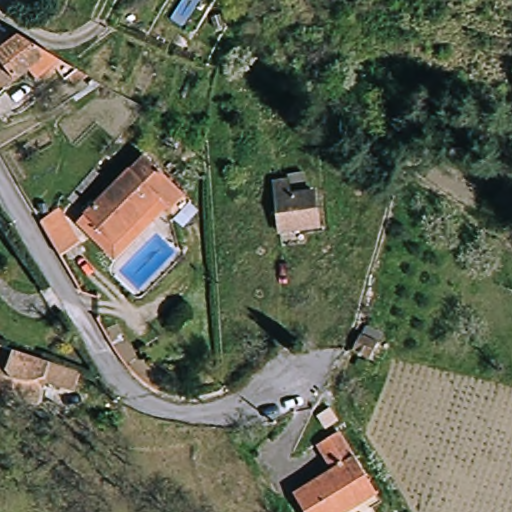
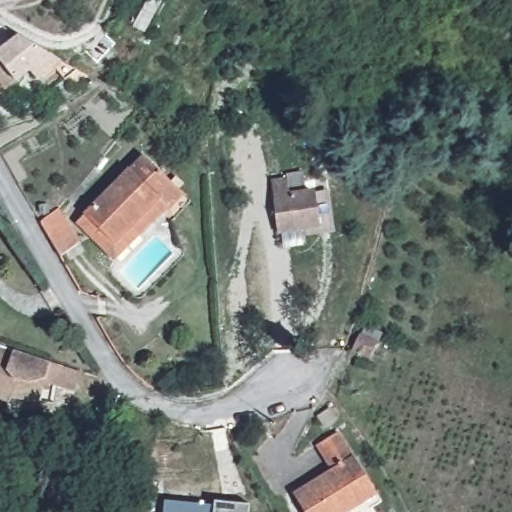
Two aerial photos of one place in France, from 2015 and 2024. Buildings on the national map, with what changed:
unchanged [(31,44),(66,64),(40,85),(32,77),(20,84),(0,59),(0,49),(17,36),(31,44)]
unchanged [(154,150),(190,181),(125,257),(97,232),(89,225),(154,150)]
unchanged [(317,192),(322,226),(280,232),(275,197),(317,192)]
unchanged [(97,232),(73,257),(48,217),(57,209),(63,201),(89,225),(97,232)]
unchanged [(372,350),(357,342),(362,325),(379,333),(372,350)]
unchanged [(66,390),(55,395),(55,408),(15,412),(13,402),(0,398),(0,342),(97,372),(87,397),(66,390)]
unchanged [(350,425),(326,435),(321,421),(343,412),(350,425)]
unchanged [(346,436),(379,497),(350,512),(302,512),(292,492),(330,471),(318,449),(346,436)]
new [(247,512),(161,512),(162,501),(212,507),(214,502),(248,507),(247,512)]

